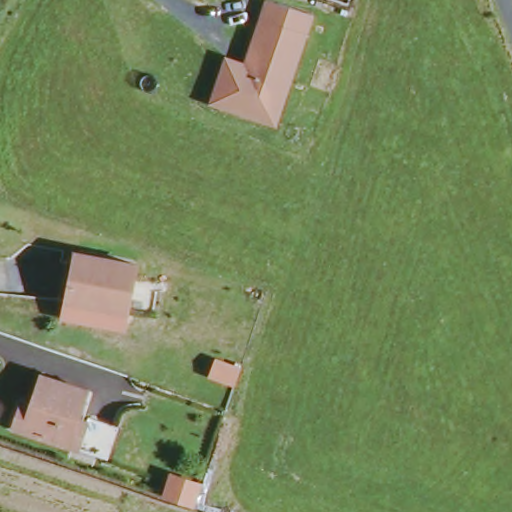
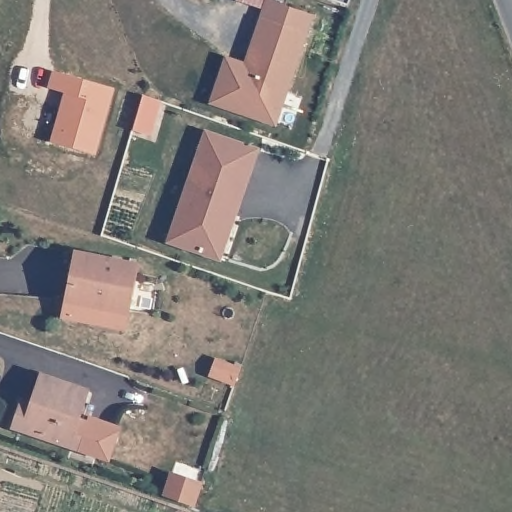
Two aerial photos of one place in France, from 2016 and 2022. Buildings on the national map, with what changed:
unchanged [(316,18),(278,130),(210,105),(225,56),(246,63),(266,0),(316,18)]
new [(56,69),(114,86),(94,151),(53,139),(67,90),(51,86),(56,69)]
new [(166,244),(204,130),(260,150),(221,260),(166,244)]
unchanged [(122,329),(62,317),(74,254),(102,259),(135,264),(134,270),(122,329)]
unchanged [(104,457),(9,426),(17,401),(27,404),(38,373),(85,388),(76,416),(84,419),(87,414),(115,424),(104,457)]
new [(173,478),(200,488),(194,505),(167,495),(173,478)]

